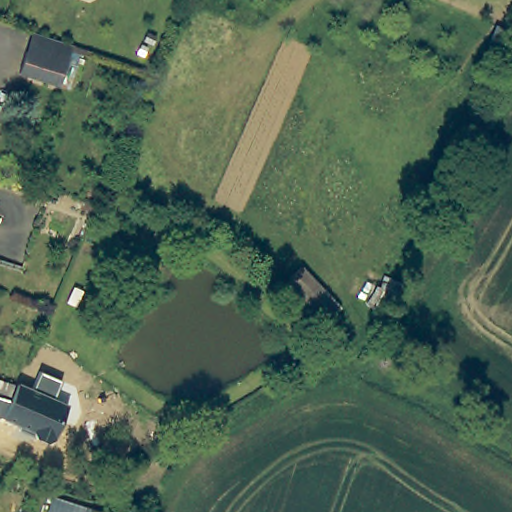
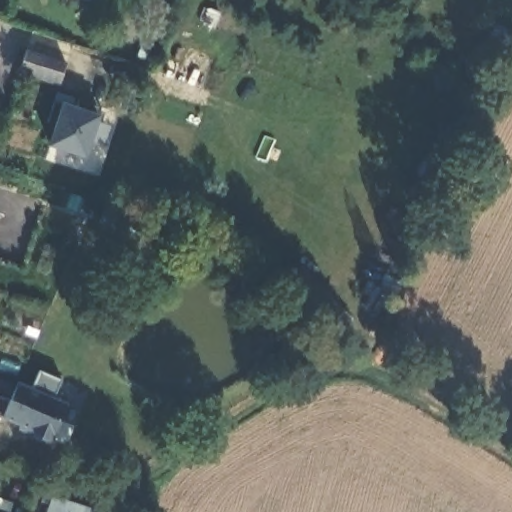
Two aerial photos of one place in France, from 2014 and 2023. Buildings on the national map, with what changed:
unchanged [(495,74),(478,67),(495,25),(512,32),(512,33),(495,74)]
unchanged [(59,90),(55,89),(19,77),(30,42),(32,37),(72,50),(70,55),(59,90)]
unchanged [(134,113),(120,109),(129,80),(143,85),(134,113)]
new [(100,116),(99,121),(111,126),(106,144),(93,139),(86,159),(47,146),(55,124),(49,123),(55,104),(62,104),(79,108),(78,101),(99,107),(100,116)]
unchanged [(300,309),(280,288),(302,267),(322,289),(300,309)]
unchanged [(32,389),(39,372),(60,381),(54,400),(66,406),(52,440),(46,442),(19,430),(21,425),(2,418),(0,417),(0,377),(17,382),(32,389)]
unchanged [(80,512),(43,512),(47,501),(80,512)]

